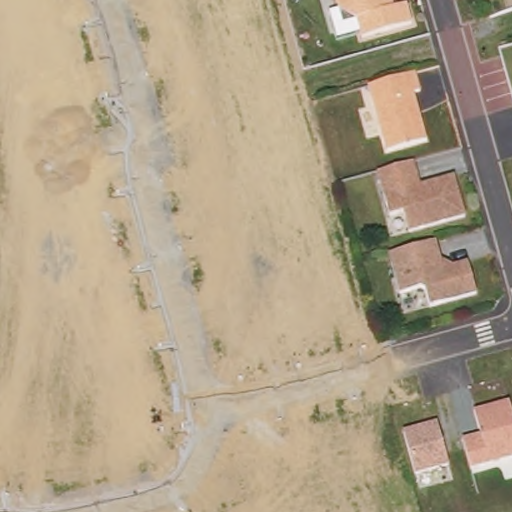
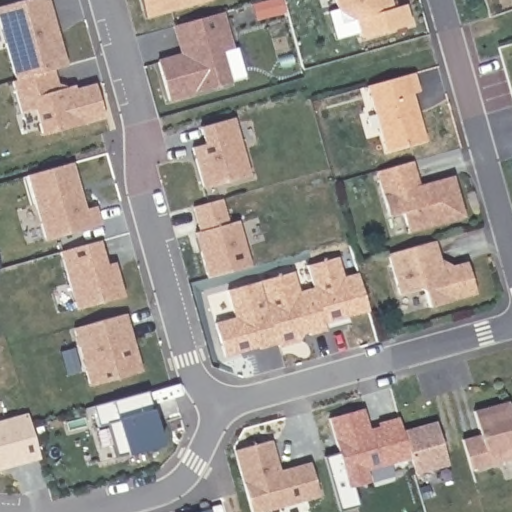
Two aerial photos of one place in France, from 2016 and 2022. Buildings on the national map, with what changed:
new [(59,33),(68,65),(54,69),(16,79),(0,19),(0,7),(23,0),(50,0),(54,13),(59,33)]
new [(147,18),(142,0),(209,0),(196,4),(147,18)]
unchanged [(406,4),(412,24),(362,38),(357,19),(339,9),(336,0),(391,0),(393,8),(406,4)]
new [(185,54),(182,44),(180,44),(175,25),(222,12),(232,49),(221,52),(230,83),(169,99),(159,61),(185,54)]
new [(16,79),(54,69),(60,89),(75,85),(76,89),(96,84),(105,117),(39,135),(32,110),(24,113),(14,80),(16,79)]
unchanged [(378,83),(415,73),(420,90),(413,93),(426,140),(386,151),(368,85),(378,83)]
new [(206,144),(201,126),(235,117),(251,175),(204,188),(193,147),(206,144)]
unchanged [(420,185),(454,175),(465,217),(408,233),(403,213),(390,217),(377,171),(413,161),(420,185)]
new [(74,163),(86,209),(97,206),(102,224),(46,240),(28,175),(74,163)]
new [(223,199),(230,223),(240,220),(252,265),(209,278),(196,232),(200,230),(194,207),(223,199)]
new [(101,240),(108,264),(116,262),(125,295),(77,309),(61,251),(101,240)]
unchanged [(440,259),(453,265),(467,262),(476,294),(430,307),(425,290),(420,288),(400,294),(389,254),(435,240),(440,259)]
new [(131,332),(134,338),(142,371),(90,385),(74,328),(126,314),(131,332)]
new [(154,411),(157,423),(163,444),(116,458),(107,424),(99,427),(93,406),(147,391),(154,411)]
unchanged [(512,408),(512,457),(469,470),(460,439),(478,433),(472,411),(510,400),(512,408)]
new [(0,420),(29,413),(41,458),(23,463),(6,467),(0,469),(0,420)]
unchanged [(437,419),(450,466),(415,474),(403,429),(437,419)]
new [(280,471),(292,467),(311,462),(320,496),(301,501),(300,494),(270,503),(271,509),(262,512),(252,512),(235,450),(272,439),(280,471)]

